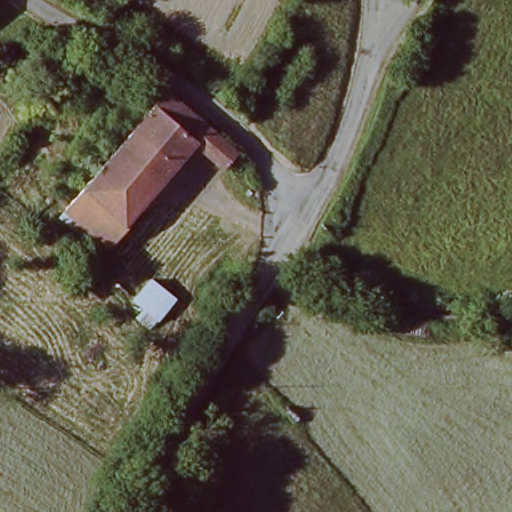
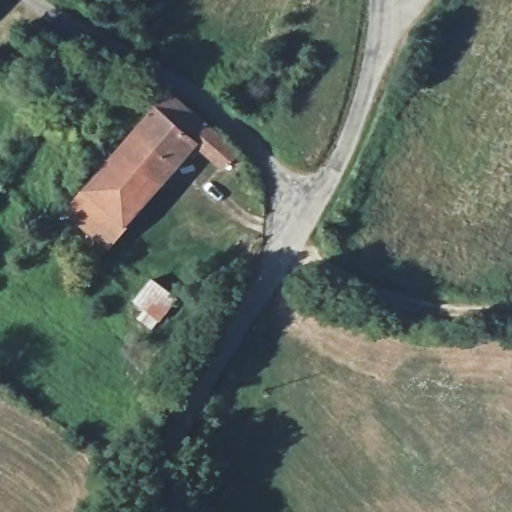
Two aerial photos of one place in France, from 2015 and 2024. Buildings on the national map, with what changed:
unchanged [(70,206),(158,103),(188,128),(200,113),(241,151),(226,168),(196,142),(128,220),(133,227),(115,247),(70,206)]

